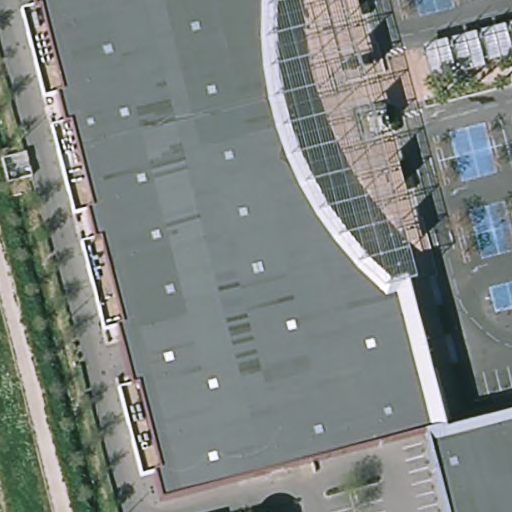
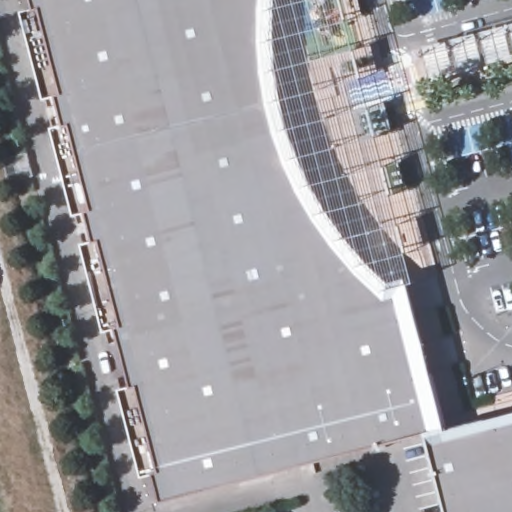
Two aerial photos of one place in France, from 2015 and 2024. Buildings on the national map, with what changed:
unchanged [(160,498),(153,471),(141,473),(119,387),(131,383),(116,325),(104,328),(81,241),(93,238),(86,209),(74,212),(51,125),(63,122),(56,92),(44,96),(21,9),(33,6),(32,0),(273,0),(274,62),(281,121),(295,152),(319,197),(345,235),(385,286),(401,282),(438,427),(160,498)]
unchanged [(446,512),(427,437),(512,415),(512,512),(446,512)]

